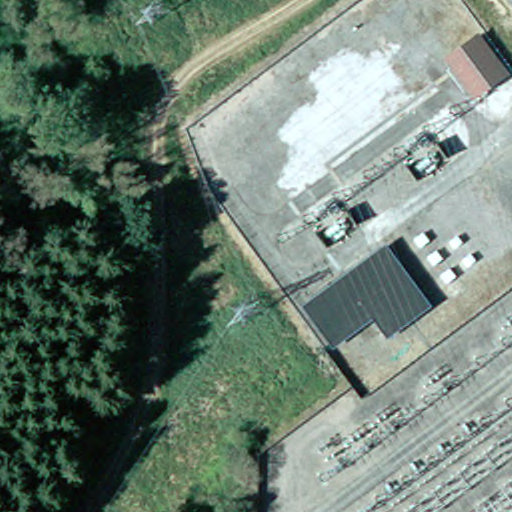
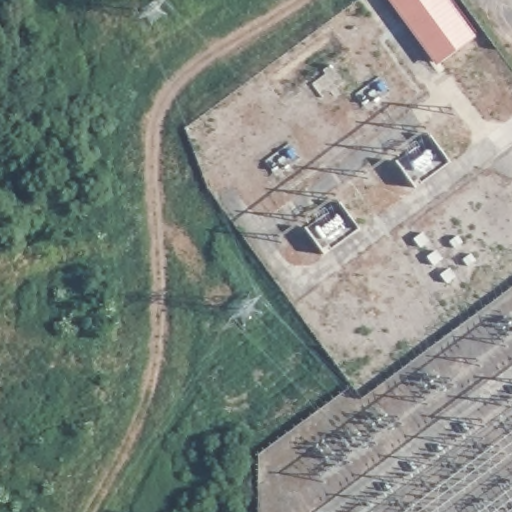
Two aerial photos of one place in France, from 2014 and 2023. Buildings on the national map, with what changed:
new [(474,100),(445,60),(437,66),(389,0),(451,0),(477,37),(482,33),(510,75),(474,100)]
demolished [(504,70),(474,94),(444,52),(475,32),(504,70)]
demolished [(430,301),(388,333),(372,315),(337,342),(303,300),(385,238),(430,301)]

